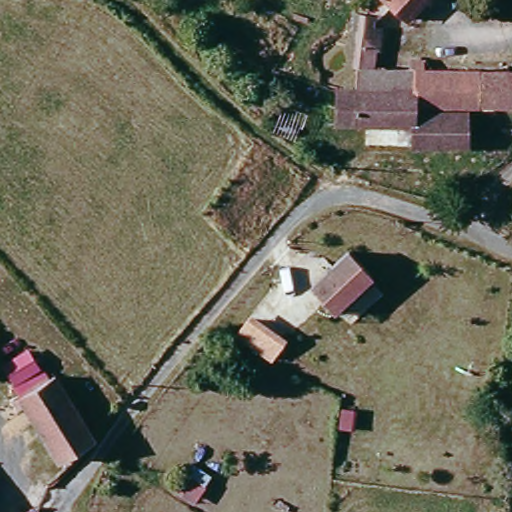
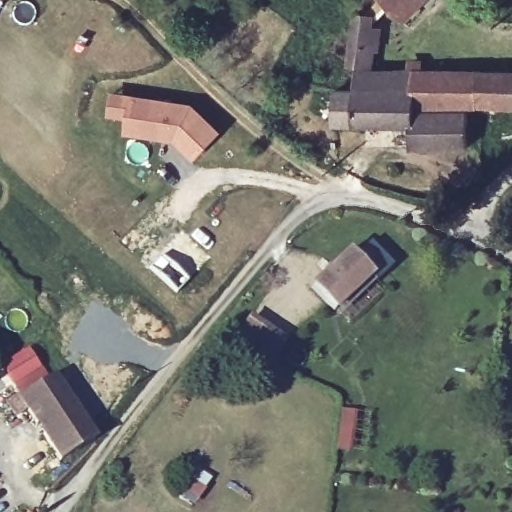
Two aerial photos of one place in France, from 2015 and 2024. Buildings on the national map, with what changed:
unchanged [(407,26),(381,0),(431,0),(407,26)]
unchanged [(353,21),(355,13),(382,17),(378,63),(361,61),(348,61),(352,39),(333,36),(337,20),(353,21)]
unchanged [(435,108),(356,94),(361,61),(378,63),(489,74),(512,77),(512,107),(488,108),(435,108)]
unchanged [(469,115),(463,162),(403,152),(405,136),(340,125),(343,92),(348,93),(356,94),(435,108),(469,115)]
new [(114,93),(196,104),(224,131),(196,156),(177,141),(127,134),(129,117),(110,116),(114,93)]
unchanged [(373,278),(334,314),(307,284),(348,248),(373,278)]
unchanged [(235,336),(251,312),(288,338),(272,363),(235,336)]
unchanged [(93,445),(87,450),(61,468),(0,390),(0,371),(15,359),(41,392),(48,386),(93,445)]

